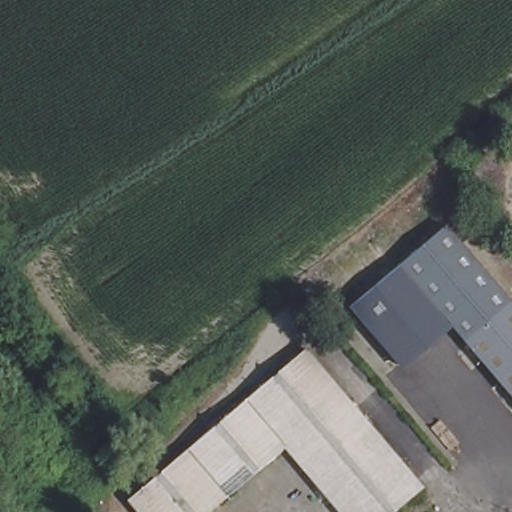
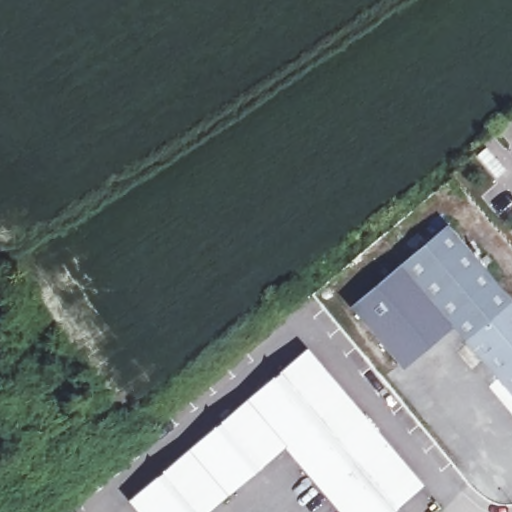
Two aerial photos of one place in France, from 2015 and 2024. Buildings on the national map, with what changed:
unchanged [(512,394),(456,328),(407,270),(454,231),(512,300),(512,394)]
unchanged [(407,270),(456,328),(406,370),(357,313),(407,270)]
unchanged [(317,349),(434,487),(405,512),(351,512),(296,448),(220,512),(150,512),(139,500),(317,349)]

